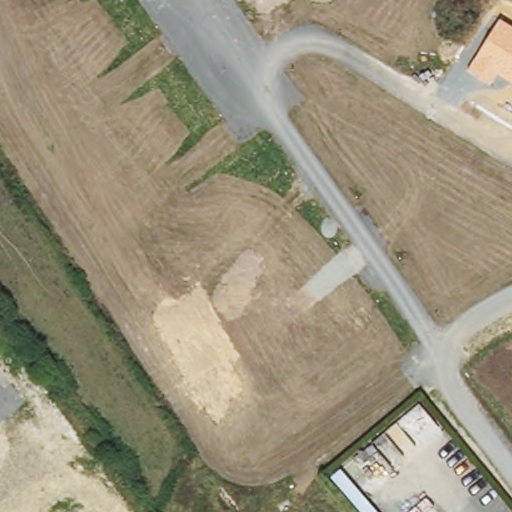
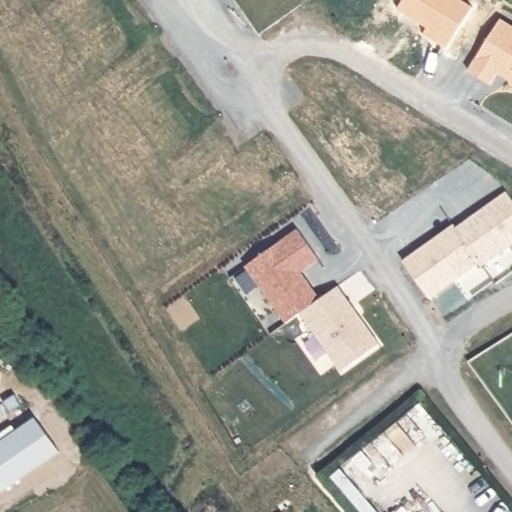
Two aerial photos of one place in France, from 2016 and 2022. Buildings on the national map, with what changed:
unchanged [(512,25),(512,85),(496,76),(489,86),(468,74),(501,17),(512,25)]
new [(482,265),(479,262),(430,298),(403,261),(438,235),(452,225),(454,229),(469,218),(505,192),(512,202),(512,244),(482,265)]
new [(300,232),(324,265),(307,277),(324,301),(291,325),(250,268),(300,232)]
new [(341,371),(302,317),(324,301),(342,288),(381,344),(341,371)]

